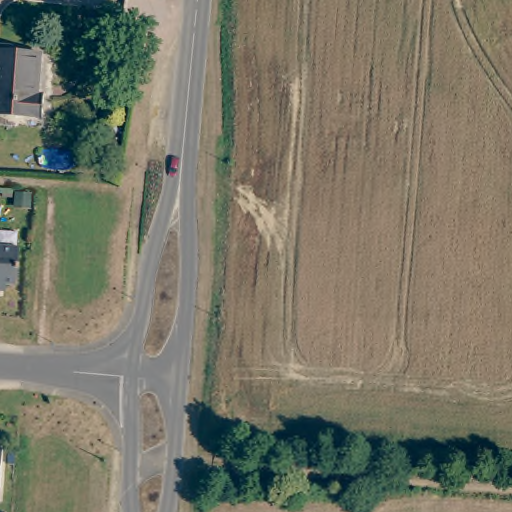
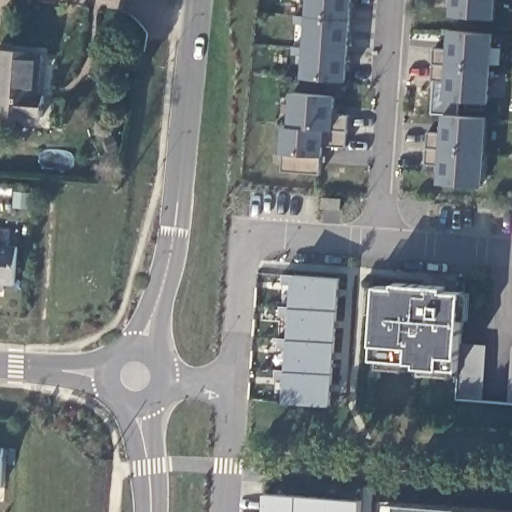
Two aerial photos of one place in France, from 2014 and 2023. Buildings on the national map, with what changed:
new [(346,81),(302,77),(307,0),(353,0),(346,81)]
new [(494,19),(450,15),(451,0),(496,0),(494,19)]
new [(434,49),(447,50),(449,31),(495,33),(490,103),(443,100),(445,80),(432,80),(434,49)]
unchanged [(39,94),(48,95),(46,115),(45,116),(0,111),(0,51),(43,54),(39,94)]
new [(335,97),(334,115),(348,115),(345,147),(323,147),(322,157),(318,174),(283,171),(287,154),(280,154),(282,127),(289,127),(291,93),(335,97)]
new [(428,133),(441,134),(443,116),(487,119),(482,186),(437,183),(438,164),(425,163),(428,133)]
unchanged [(13,291),(2,291),(2,297),(0,297),(0,253),(16,254),(13,291)]
new [(336,279),(333,333),(336,333),(331,406),(285,402),(294,275),(336,279)]
new [(482,401),(456,398),(457,369),(452,368),(452,377),(421,374),(425,367),(417,368),(418,362),(409,361),(402,360),(401,370),(377,368),(381,360),(373,359),(375,344),(373,344),(377,286),(395,287),(395,283),(445,287),(445,291),(464,292),(470,292),(467,320),(462,320),(460,343),(485,346),(482,401)]
new [(508,403),(512,360),(512,403),(508,403)]
unchanged [(0,488),(0,448),(2,448),(0,488)]
new [(361,500),(360,512),(265,512),(266,493),(361,500)]
new [(511,512),(397,512),(397,503),(511,512)]

